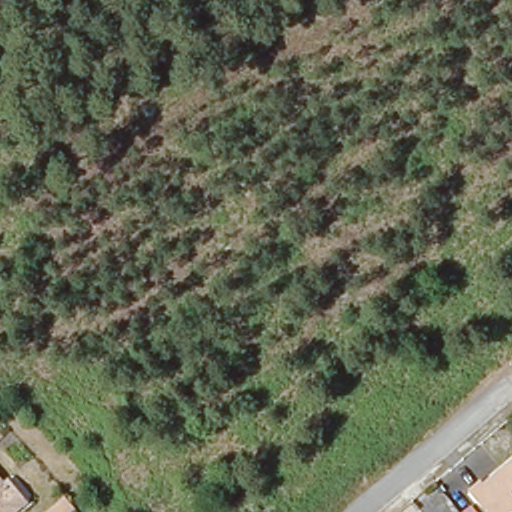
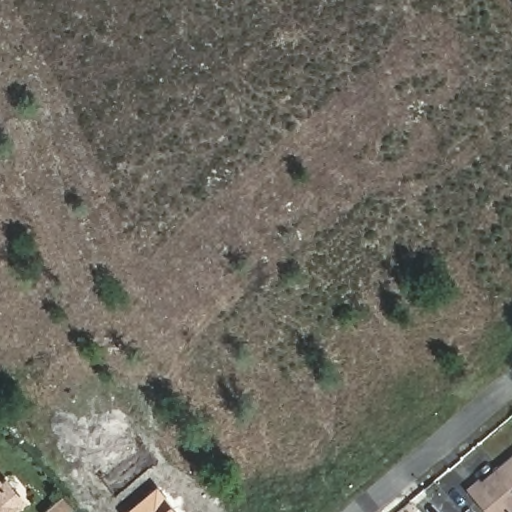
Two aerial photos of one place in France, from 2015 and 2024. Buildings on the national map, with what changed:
unchanged [(469,493),(482,481),(485,484),(512,462),(512,512),(486,512),(469,493)]
unchanged [(23,509),(19,512),(0,512),(0,477),(8,487),(13,483),(30,503),(23,509)]
new [(158,487),(173,504),(179,512),(129,512),(158,487)]

